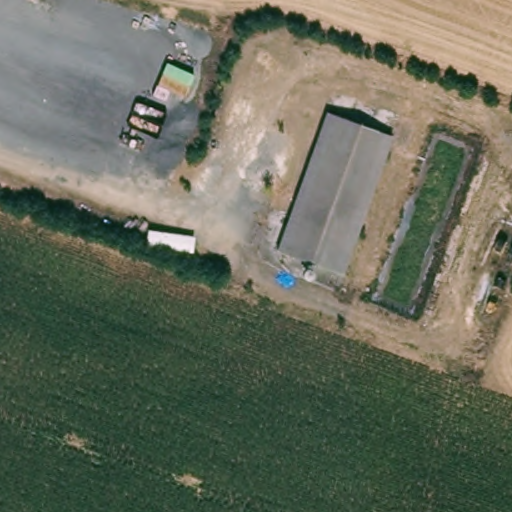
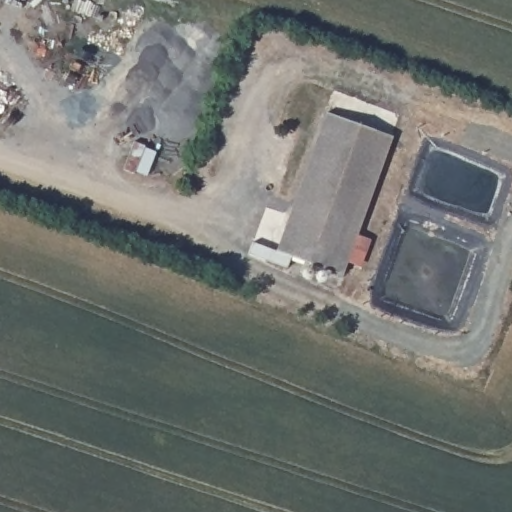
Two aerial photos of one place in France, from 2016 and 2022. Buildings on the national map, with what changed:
unchanged [(393,140),(342,283),(278,260),(328,118),(393,140)]

